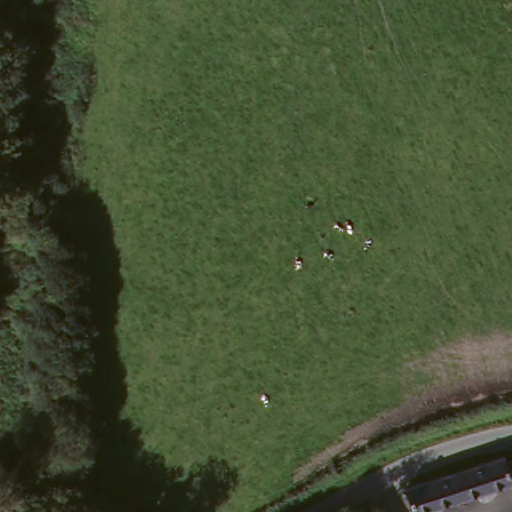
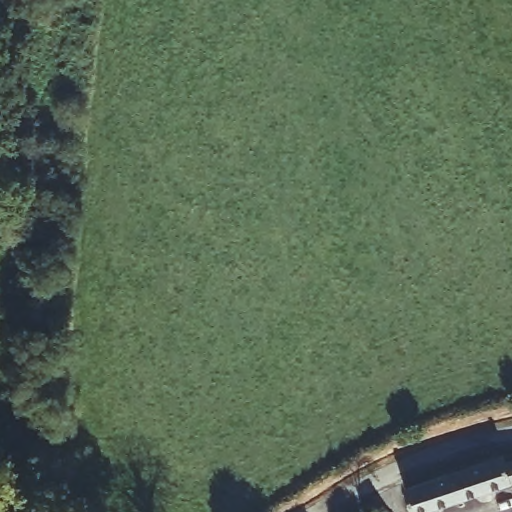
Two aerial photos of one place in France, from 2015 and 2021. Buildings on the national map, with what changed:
unchanged [(425,512),(408,512),(400,491),(444,475),(499,458),(500,464),(512,461),(512,484),(507,485),(425,512)]

